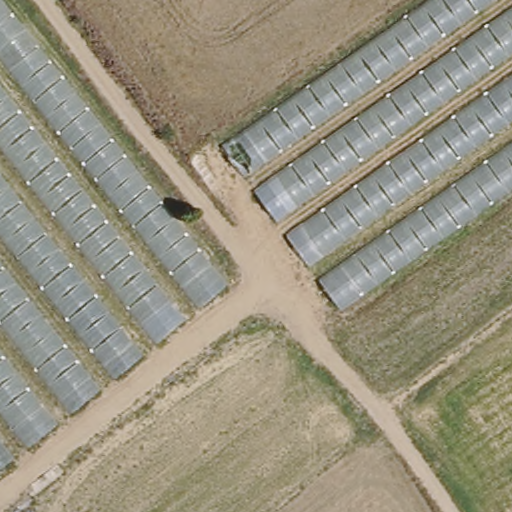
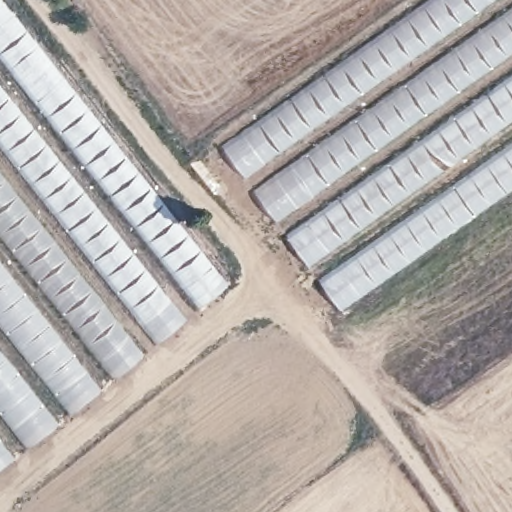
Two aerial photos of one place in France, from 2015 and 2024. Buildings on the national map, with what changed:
unchanged [(232,288),(0,473),(0,0),(8,0),(232,288)]
unchanged [(512,196),(342,313),(225,150),(435,0),(512,0),(512,196)]

